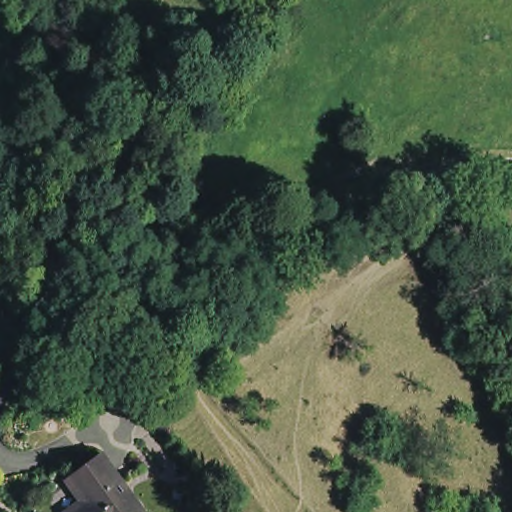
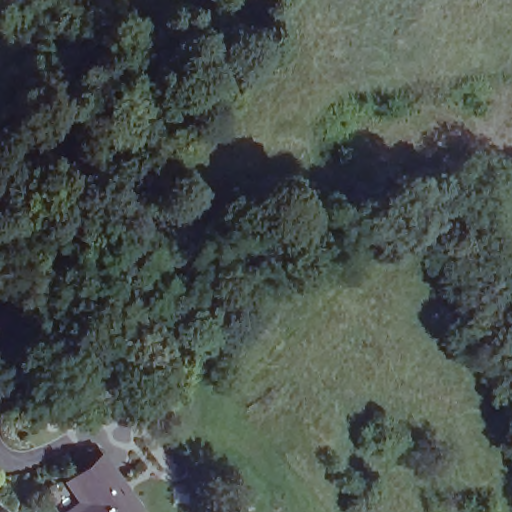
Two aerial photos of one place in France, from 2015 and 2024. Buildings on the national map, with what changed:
unchanged [(65,487),(98,461),(135,511),(133,512),(64,512),(76,502),(65,487)]

